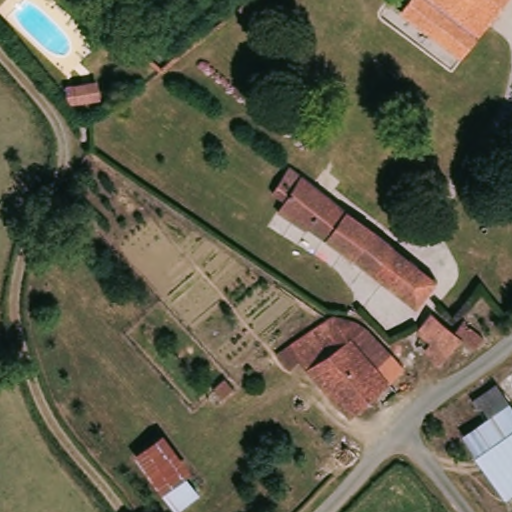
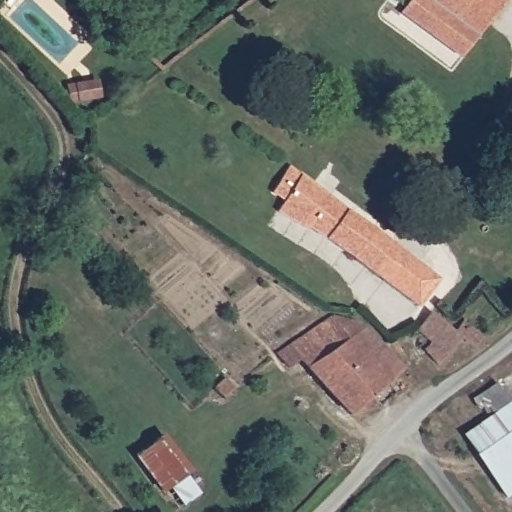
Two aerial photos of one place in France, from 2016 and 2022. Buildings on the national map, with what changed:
unchanged [(463,51),(403,1),(404,0),(503,0),(488,19),(463,51)]
unchanged [(345,200),(356,208),(358,209),(382,226),(383,227),(392,234),(381,249),(361,278),(329,254),(320,247),(313,242),(306,238),(292,230),(269,214),(271,210),(279,197),(268,188),(276,175),(284,163),(286,159),(308,175),(345,200)]
unchanged [(409,245),(448,271),(414,312),(365,281),(361,278),(381,249),(392,234),(409,245)]
unchanged [(329,324),(342,314),(370,333),(380,344),(401,371),(352,414),(326,386),(295,351),(329,324)]
unchanged [(428,349),(432,342),(421,329),(435,314),(462,341),(439,361),(428,349)]
unchanged [(473,331),(480,339),(476,356),(462,341),(473,331)]
unchanged [(496,444),(468,404),(499,383),(512,402),(512,493),(507,497),(476,456),(496,444)]
unchanged [(193,468),(187,474),(198,494),(180,512),(176,512),(136,457),(164,433),(193,468)]

